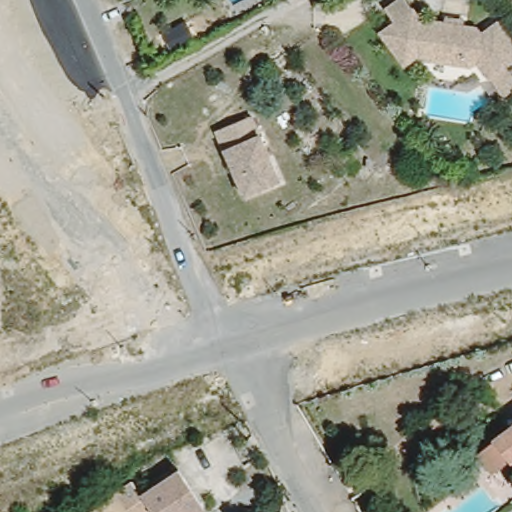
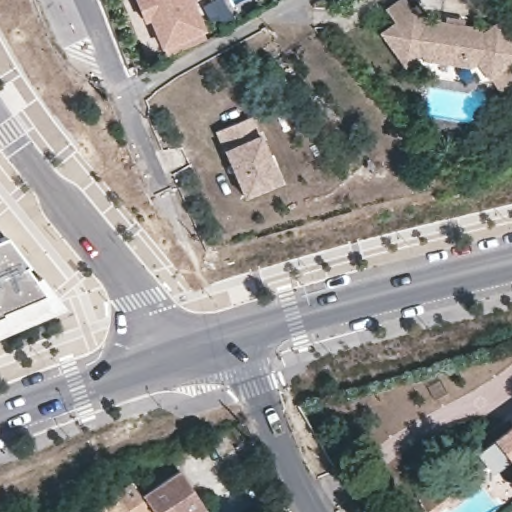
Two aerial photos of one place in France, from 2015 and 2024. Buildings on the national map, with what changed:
new [(159,52),(138,0),(188,0),(204,35),(159,52)]
unchanged [(493,79),(480,63),(474,68),(428,60),(423,54),(407,66),(383,35),(397,25),(386,11),(400,0),(405,0),(426,26),(433,22),(449,25),(451,18),(463,20),(462,27),(479,30),(484,37),(500,24),(512,41),(512,64),(508,67),(512,72),(512,95),(508,99),(493,79)]
unchanged [(256,113),(282,179),(247,193),(220,128),(256,113)]
new [(0,329),(0,243),(62,308),(0,329)]
unchanged [(477,453),(512,427),(512,460),(492,475),(477,453)]
unchanged [(179,469),(201,507),(194,512),(155,512),(154,509),(142,493),(179,469)]
unchanged [(132,477),(140,490),(142,493),(154,509),(150,512),(89,512),(87,508),(132,477)]

